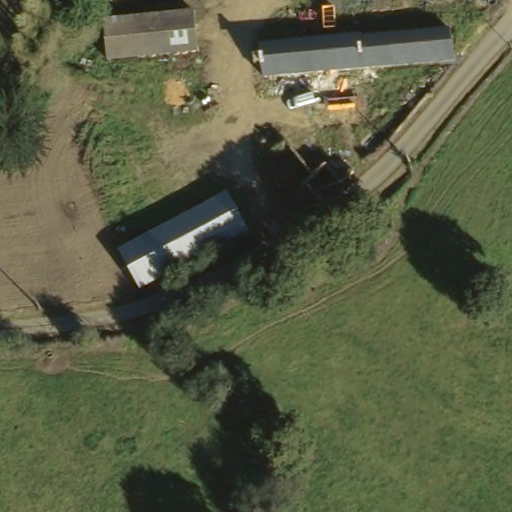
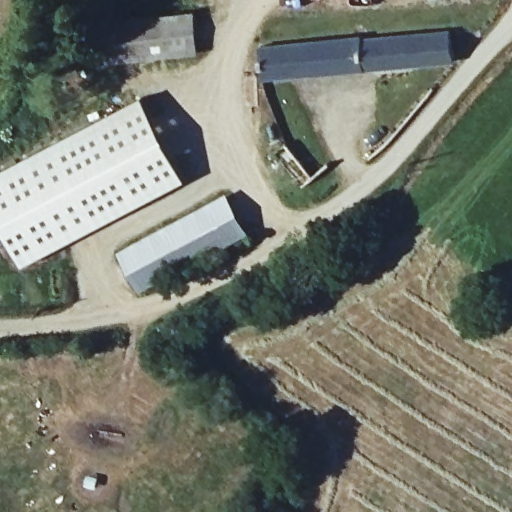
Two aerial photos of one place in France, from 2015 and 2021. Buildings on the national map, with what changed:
unchanged [(119,61),(115,17),(202,9),(207,51),(119,61)]
unchanged [(278,79),(267,81),(263,52),(459,16),(465,56),(278,79)]
new [(24,265),(0,219),(0,171),(142,97),(187,179),(24,265)]
demolished [(338,145),(360,174),(340,189),(318,161),(338,145)]
unchanged [(250,237),(144,292),(124,250),(230,197),(250,237)]

